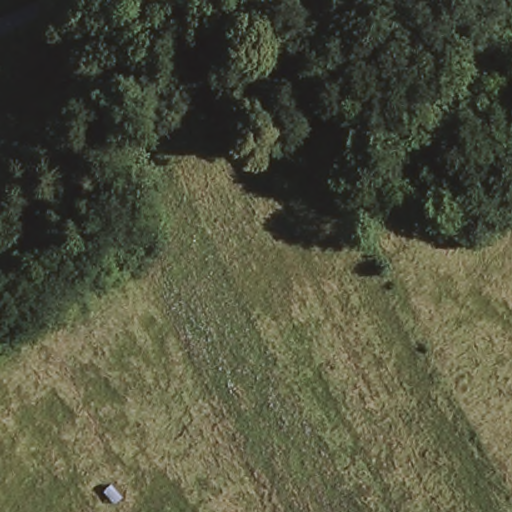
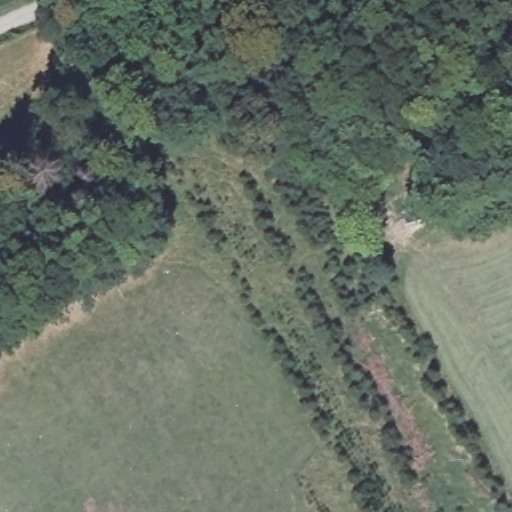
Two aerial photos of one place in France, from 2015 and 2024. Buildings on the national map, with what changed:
[]

